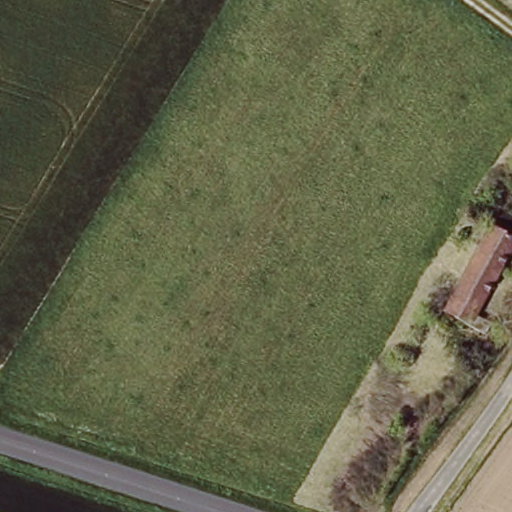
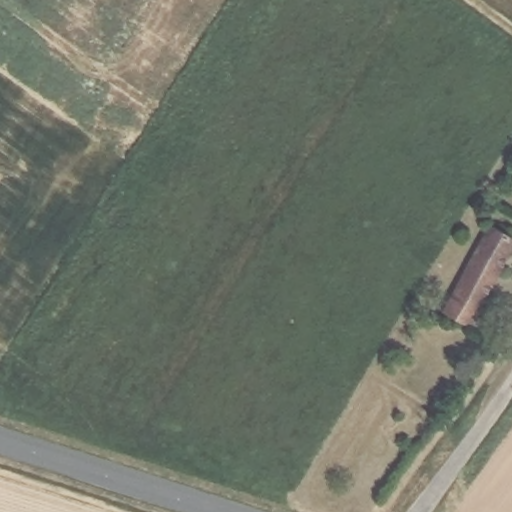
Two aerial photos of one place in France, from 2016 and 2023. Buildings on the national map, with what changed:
unchanged [(512,239),(512,244),(472,315),(486,322),(480,333),(442,312),(490,226),(512,239)]

